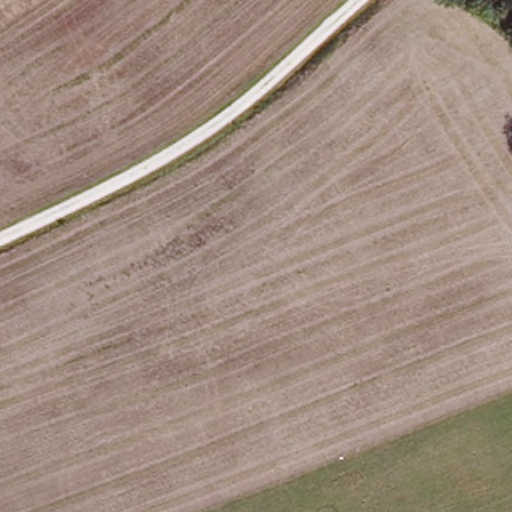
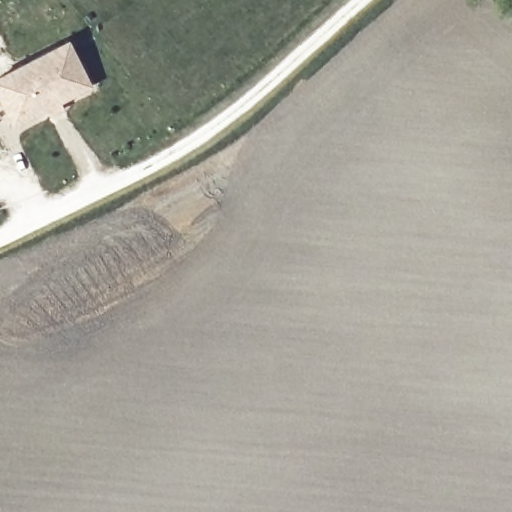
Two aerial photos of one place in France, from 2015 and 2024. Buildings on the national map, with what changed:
new [(48,117),(44,110),(9,127),(0,109),(0,78),(64,46),(86,89),(55,105),(58,111),(48,117)]

